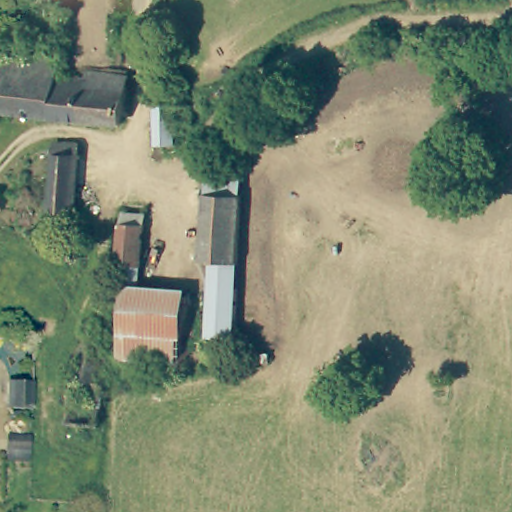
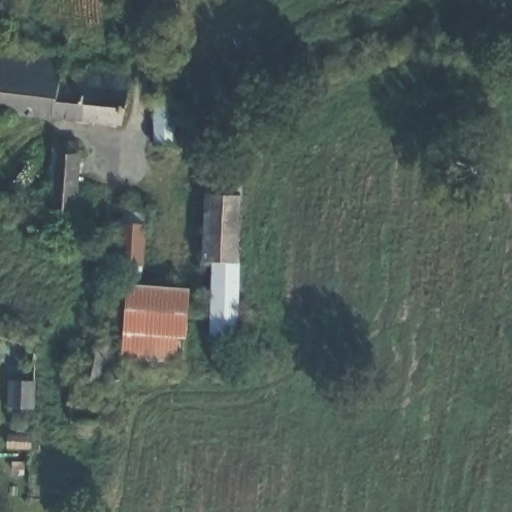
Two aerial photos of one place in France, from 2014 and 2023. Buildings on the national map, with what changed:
unchanged [(52,73),(51,115),(0,110),(0,48),(53,53),(52,73)]
unchanged [(85,76),(86,70),(123,73),(116,121),(51,115),(52,73),(85,76)]
unchanged [(171,98),(170,116),(170,128),(169,144),(152,144),(154,97),(165,97),(171,98)]
unchanged [(46,208),(50,138),(78,139),(73,210),(46,208)]
unchanged [(211,157),(242,158),(240,194),(209,193),(211,157)]
unchanged [(240,194),(237,263),(214,261),(205,261),(209,193),(240,194)]
unchanged [(128,284),(119,284),(122,211),(144,212),(142,285),(128,284)]
unchanged [(87,235),(85,252),(70,250),(73,232),(87,235)]
unchanged [(237,263),(233,339),(210,338),(214,261),(237,263)]
unchanged [(185,287),(179,359),(122,353),(128,284),(142,285),(185,287)]
unchanged [(245,364),(231,363),(232,353),(245,354),(245,364)]
unchanged [(31,377),(32,404),(7,404),(6,378),(31,377)]
unchanged [(12,460),(12,434),(35,434),(33,459),(12,460)]

